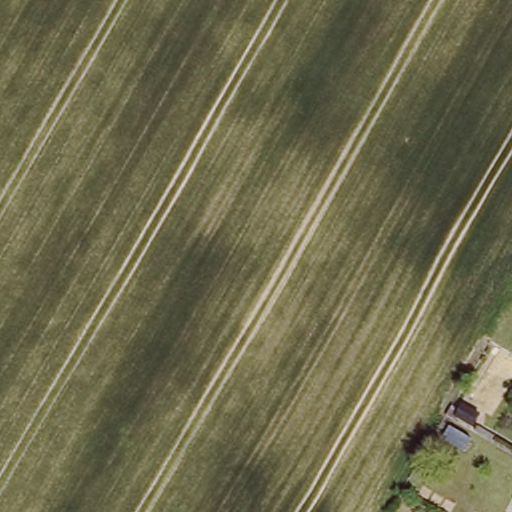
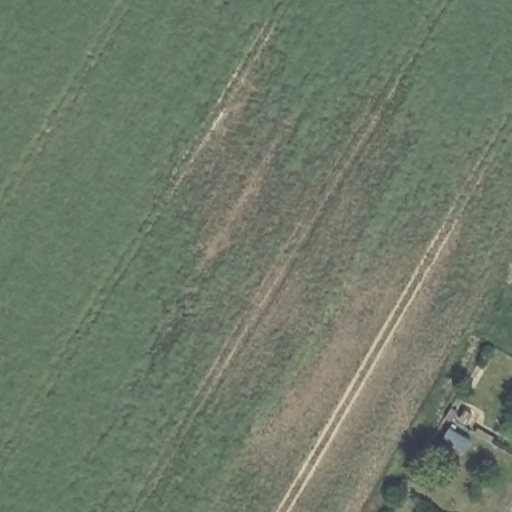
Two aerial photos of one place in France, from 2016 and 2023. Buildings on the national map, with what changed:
unchanged [(470,439),(464,448),(446,436),(452,427),(470,439)]

